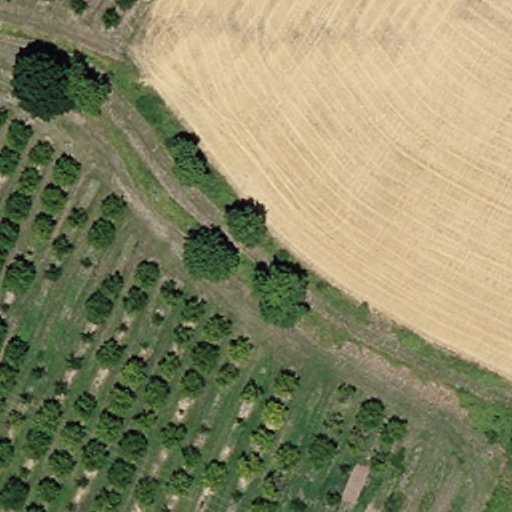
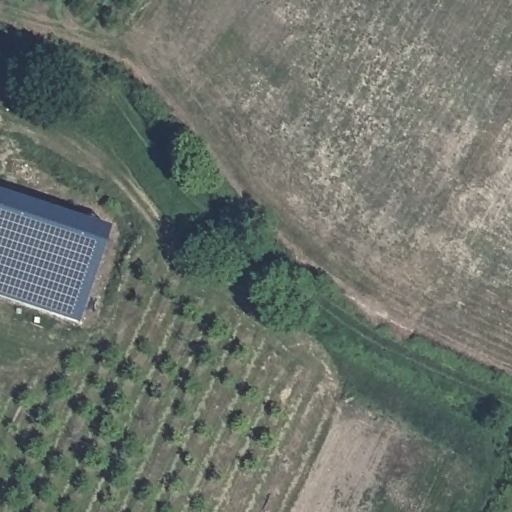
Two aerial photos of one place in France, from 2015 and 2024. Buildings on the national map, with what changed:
new [(82,320),(0,293),(0,188),(112,222),(82,320)]

